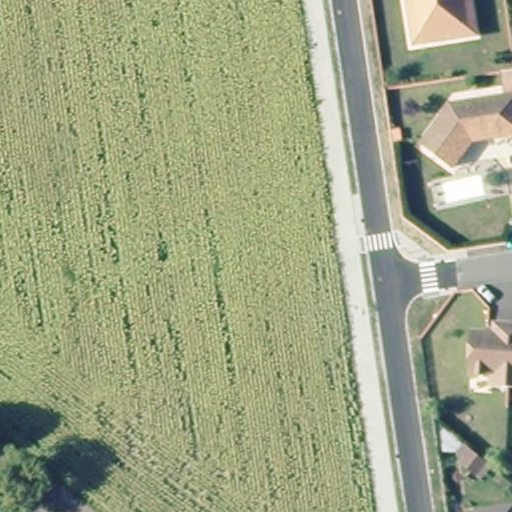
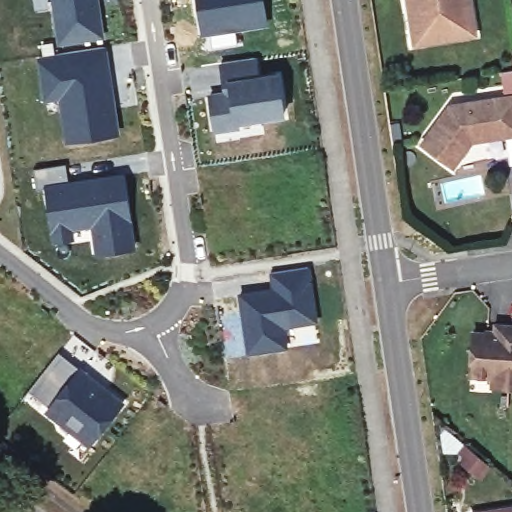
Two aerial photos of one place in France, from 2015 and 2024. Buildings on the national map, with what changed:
new [(102,37),(59,43),(53,0),(96,0),(102,37)]
new [(268,26),(234,31),(236,44),(211,47),(210,35),(201,36),(197,0),(264,0),(268,26)]
unchanged [(408,0),(469,0),(475,35),(422,43),(415,44),(408,0)]
new [(42,56),(40,45),(53,42),(54,54),(107,46),(120,133),(65,144),(58,100),(42,101),(36,57),(42,56)]
new [(224,84),(221,63),(254,57),(257,79),(277,76),(283,115),(237,122),(237,127),(214,131),(209,96),(225,94),(224,84)]
unchanged [(450,106),(512,97),(512,136),(473,141),(453,169),(423,146),(450,106)]
new [(66,164),(68,180),(126,172),(137,247),(94,254),(90,227),(75,230),(76,235),(52,241),(44,185),(35,187),(33,169),(66,164)]
new [(271,287),(269,271),(311,265),(319,321),(287,328),(289,346),(245,353),(237,292),(271,287)]
unchanged [(512,391),(490,390),(490,380),(467,379),(470,335),(492,336),(493,327),(509,328),(512,329),(512,391)]
new [(58,352),(78,366),(47,407),(27,391),(58,352)]
new [(47,407),(78,366),(126,401),(90,446),(43,412),(47,407)]
unchanged [(466,457),(460,451),(469,442),(475,447),(487,457),(478,466),(466,457)]

